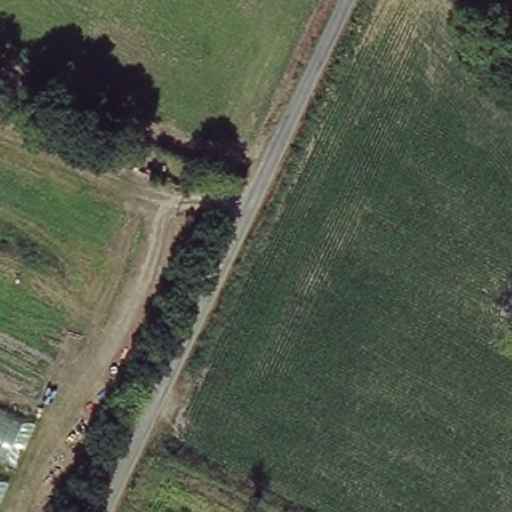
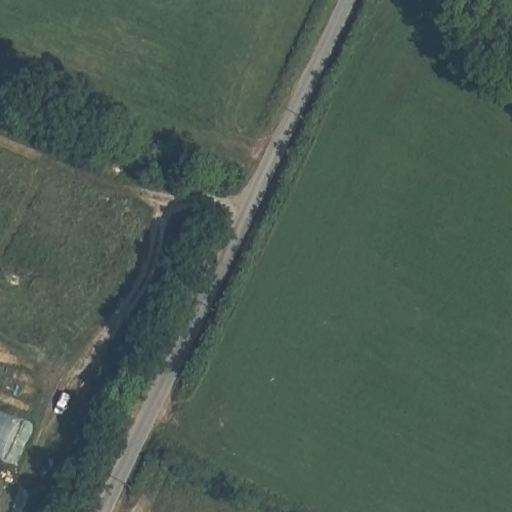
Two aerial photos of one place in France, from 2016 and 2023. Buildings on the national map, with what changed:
unchanged [(0,470),(0,413),(21,422),(0,470)]
unchanged [(0,498),(0,479),(7,482),(0,498)]

